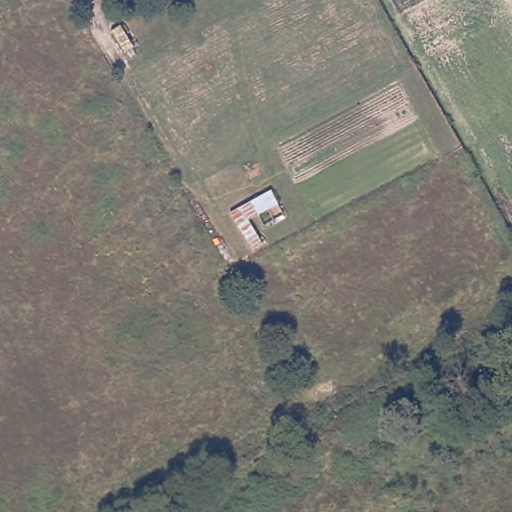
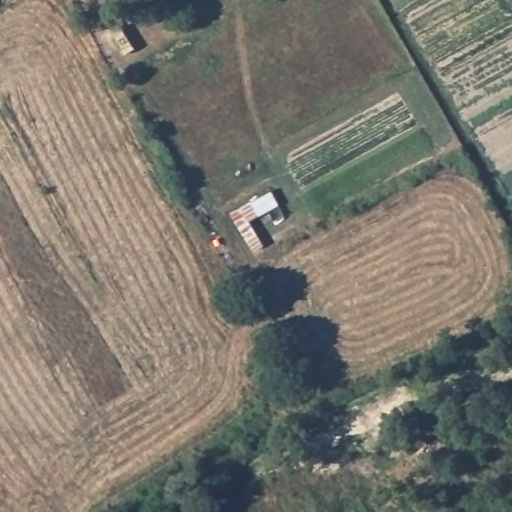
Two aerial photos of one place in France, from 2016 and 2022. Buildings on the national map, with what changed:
unchanged [(284,204),(255,220),(267,246),(255,252),(237,217),(275,189),(284,204)]

